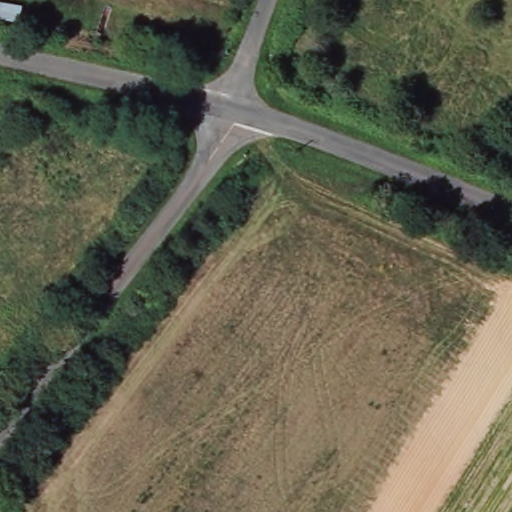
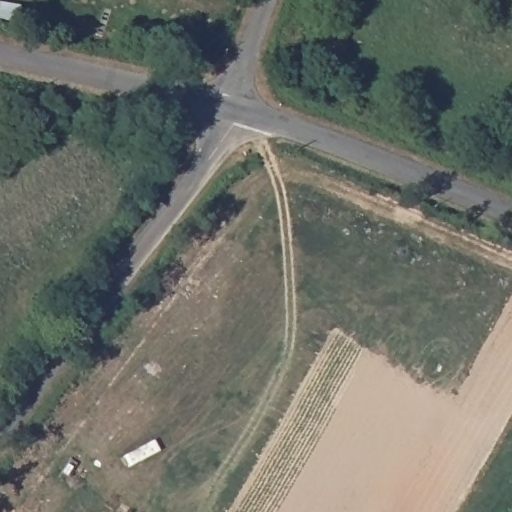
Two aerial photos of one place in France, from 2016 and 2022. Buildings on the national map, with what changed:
unchanged [(16,20),(0,18),(0,0),(19,0),(16,20)]

